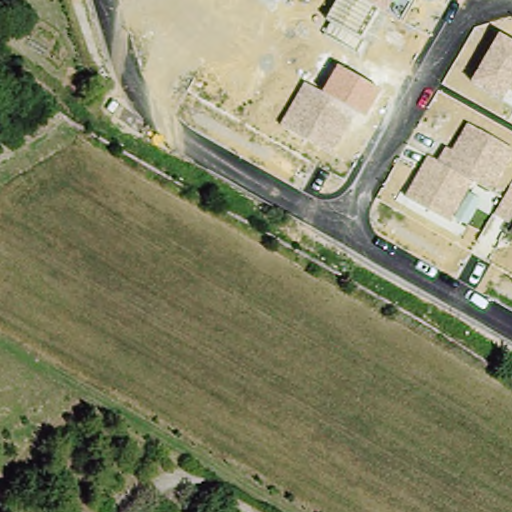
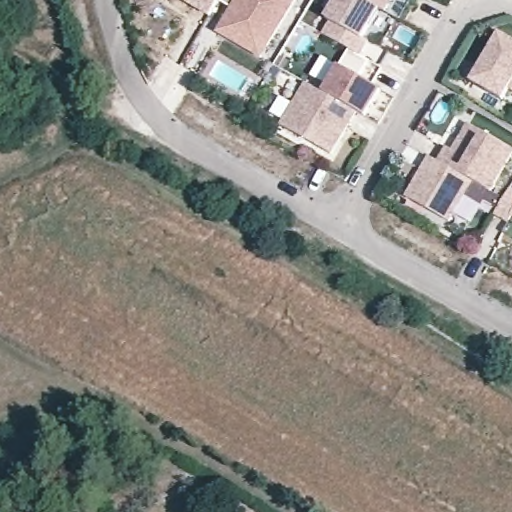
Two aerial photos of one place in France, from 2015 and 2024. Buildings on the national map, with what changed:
unchanged [(213,10),(195,0),(219,0),(213,10)]
new [(236,0),(291,0),(261,51),(220,27),(236,0)]
unchanged [(386,14),(378,10),(362,39),(368,42),(360,55),(324,35),(331,21),(326,19),(337,0),(394,0),(386,14)]
unchanged [(512,92),(509,91),(503,100),(469,84),(499,32),(512,39),(512,92)]
unchanged [(366,59),(383,70),(373,86),(381,91),(367,118),(358,113),(333,156),(280,125),(304,81),(322,91),(338,65),(356,76),(366,59)]
unchanged [(512,157),(491,192),(474,183),(451,224),(404,197),(428,155),(438,161),(446,147),(451,149),(467,123),(512,149),(512,157)]
unchanged [(508,224),(493,216),(510,187),(512,188),(512,218),(511,217),(508,224)]
unchanged [(512,228),(512,237),(507,235),(512,228)]

